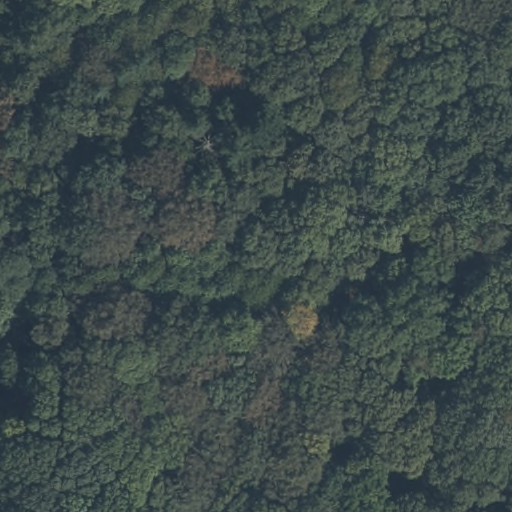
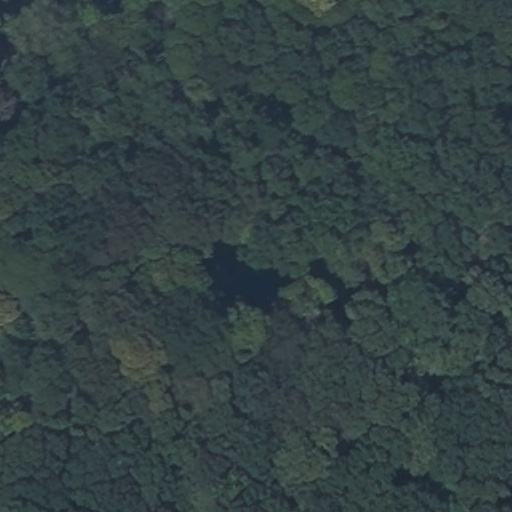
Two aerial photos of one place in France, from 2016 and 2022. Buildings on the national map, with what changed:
[]

